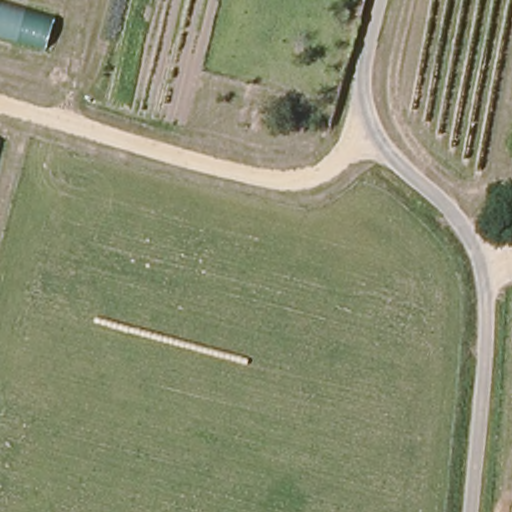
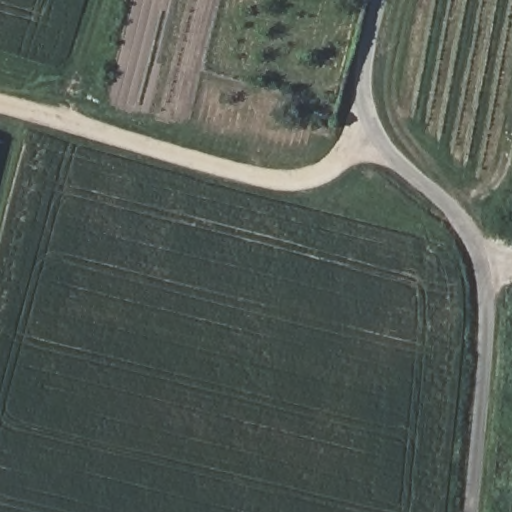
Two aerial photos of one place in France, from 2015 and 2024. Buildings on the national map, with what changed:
demolished [(0,34),(0,4),(53,20),(45,47),(0,34)]

